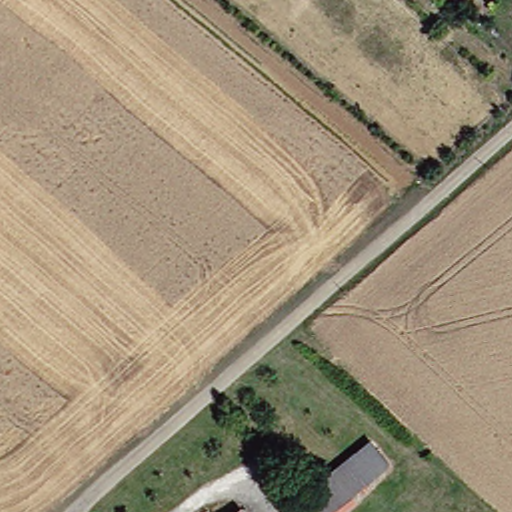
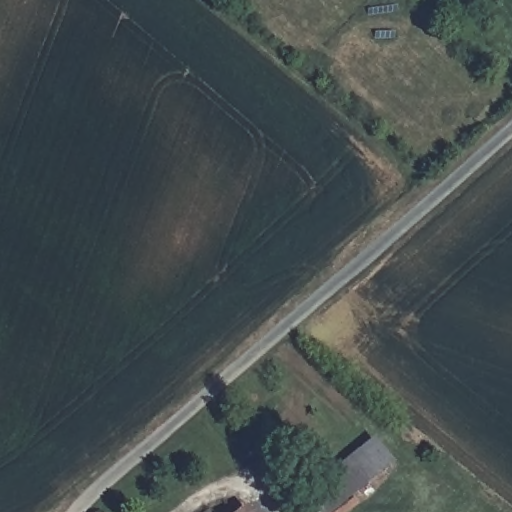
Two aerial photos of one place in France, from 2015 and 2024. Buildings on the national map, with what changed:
unchanged [(405,463),(344,512),(327,512),(314,497),(385,440),(405,463)]
unchanged [(254,512),(244,512),(250,507),(254,512)]

